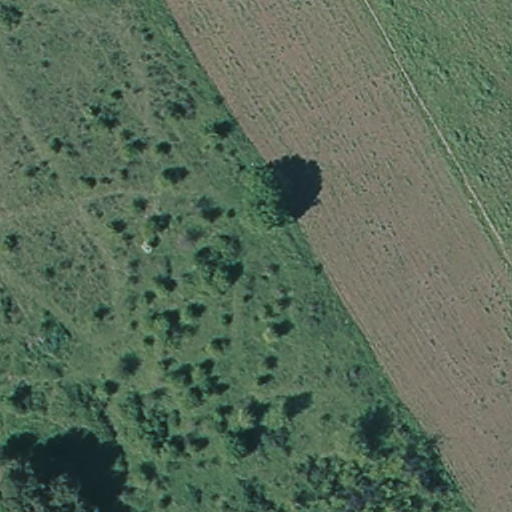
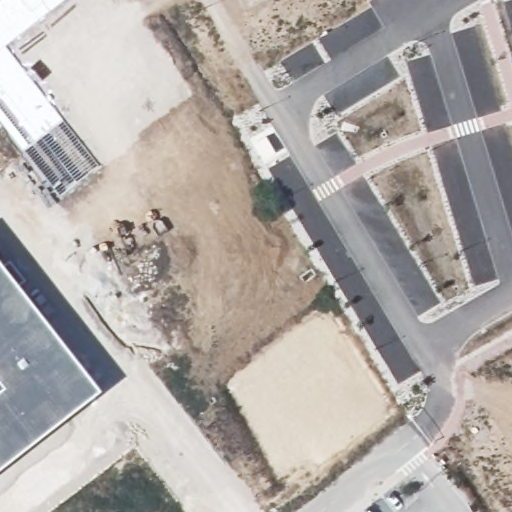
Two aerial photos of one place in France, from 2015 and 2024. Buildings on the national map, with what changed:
new [(0,119),(0,0),(64,0),(5,45),(99,164),(60,195),(0,119)]
new [(96,389),(0,464),(0,267),(96,389)]

